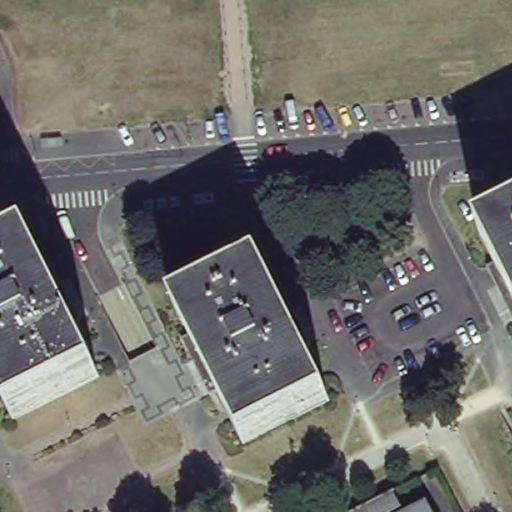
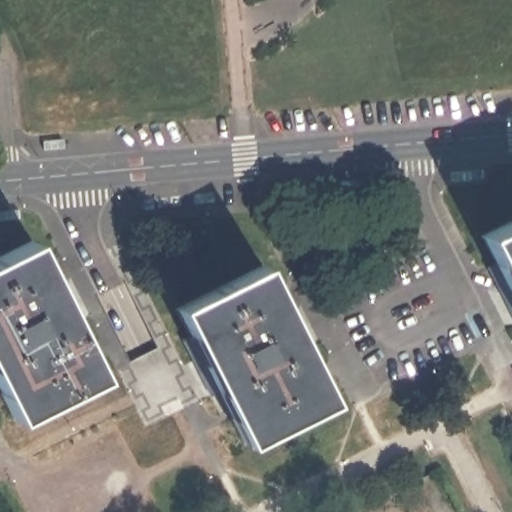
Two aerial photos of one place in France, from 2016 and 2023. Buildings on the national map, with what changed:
unchanged [(506,291),(497,296),(483,268),(492,263),(479,236),(512,219),(512,323),(511,323),(498,296),(506,291)]
unchanged [(30,240),(45,269),(54,264),(68,292),(80,318),(71,322),(98,375),(13,418),(0,393),(0,256),(30,240)]
unchanged [(199,370),(186,342),(195,337),(180,309),(265,267),(280,297),(287,292),(302,320),(313,344),(305,348),(332,401),(248,443),(222,392),(213,396),(199,370)]
unchanged [(344,509),(393,484),(405,508),(426,498),(433,512),(346,512),(344,509)]

